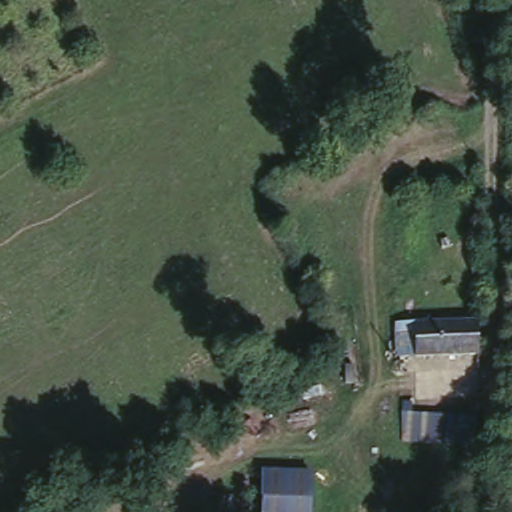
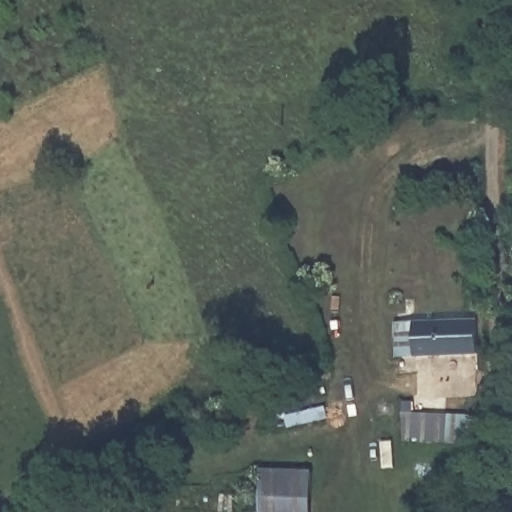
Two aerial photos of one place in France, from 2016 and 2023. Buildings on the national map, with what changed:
unchanged [(478,318),(481,354),(397,359),(394,320),(478,318)]
unchanged [(477,414),(476,444),(402,441),(402,412),(477,414)]
unchanged [(311,471),(312,512),(257,512),(259,469),(311,471)]

